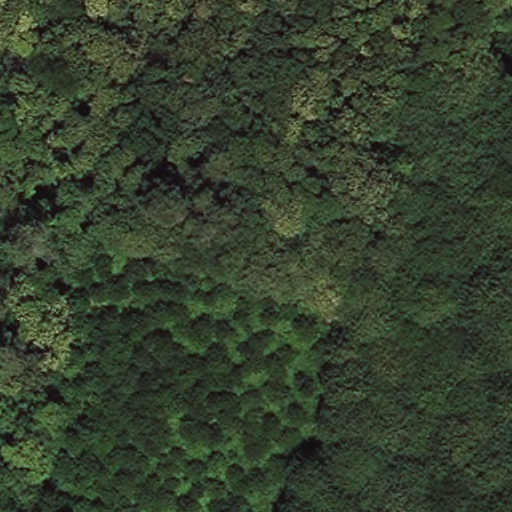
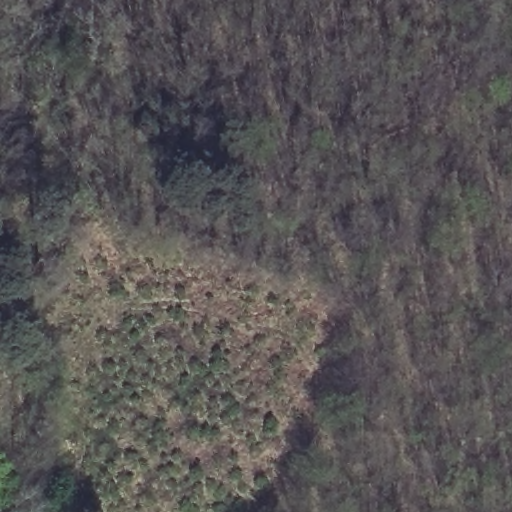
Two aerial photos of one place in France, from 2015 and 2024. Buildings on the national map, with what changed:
[]

